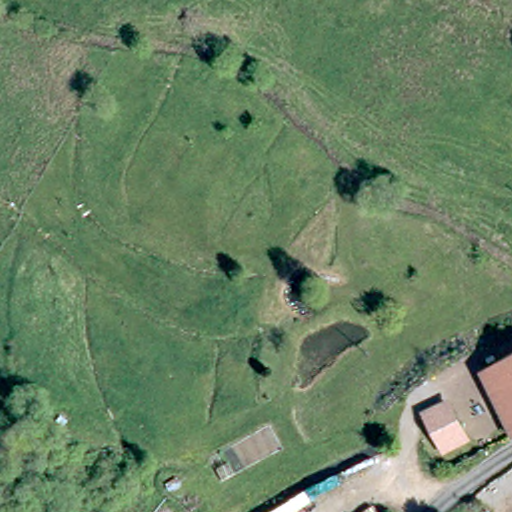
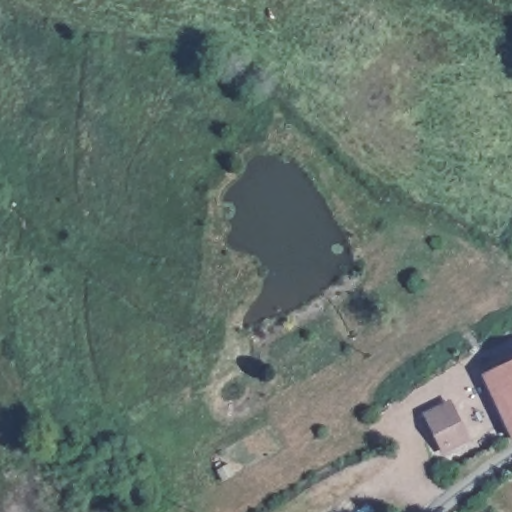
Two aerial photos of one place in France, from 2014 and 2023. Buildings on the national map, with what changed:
unchanged [(511,428),(484,362),(512,350),(512,428),(511,428)]
unchanged [(441,411),(460,447),(437,458),(419,422),(441,411)]

